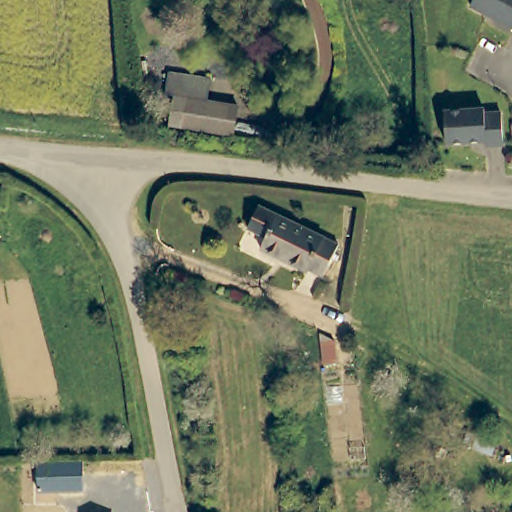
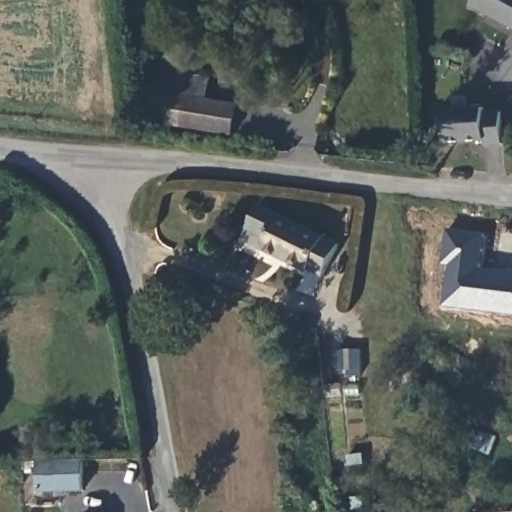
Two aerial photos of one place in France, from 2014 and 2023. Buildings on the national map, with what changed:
unchanged [(475,0),(512,0),(512,25),(474,4),(475,0)]
unchanged [(257,139),(184,132),(187,102),(178,101),(180,80),(219,84),(217,105),(260,109),(257,139)]
unchanged [(486,118),(503,118),(504,148),(490,148),(489,144),(449,144),(448,112),(486,111),(486,118)]
unchanged [(339,245),(323,278),(309,270),(308,273),(261,249),(267,237),(249,228),(260,205),(339,245)]
new [(454,263),(447,263),(451,228),(488,232),(484,266),(512,269),(512,310),(508,310),(468,305),(450,304),(454,263)]
unchanged [(38,490),(39,461),(84,461),(83,490),(38,490)]
demolished [(84,500),(116,501),(115,512),(83,512),(84,500)]

